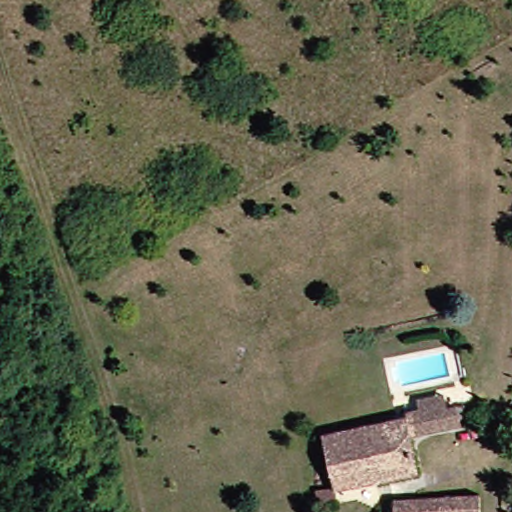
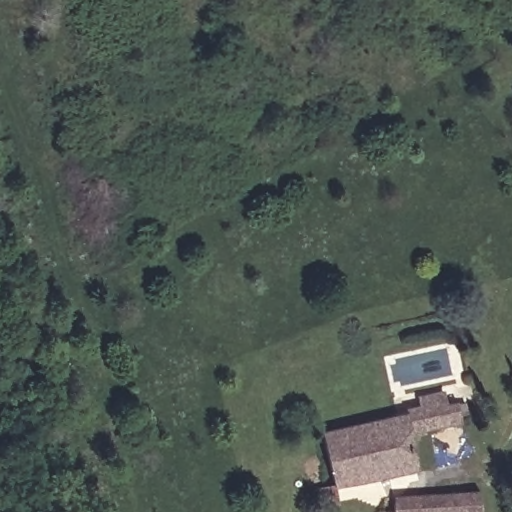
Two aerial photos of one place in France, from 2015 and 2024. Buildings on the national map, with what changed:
unchanged [(430,402),(454,398),(456,413),(467,410),(469,428),(420,436),(424,475),(340,488),(332,437),(357,432),(433,417),(430,402)]
unchanged [(324,511),(320,491),(340,488),(342,508),(324,511)]
unchanged [(488,512),(387,512),(388,503),(405,502),(403,507),(427,510),(427,495),(488,495),(488,512)]

